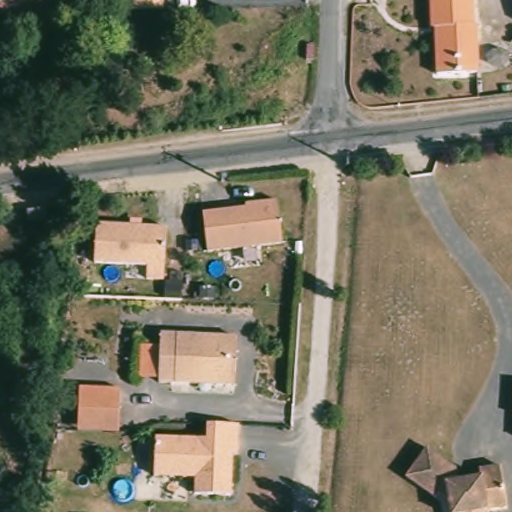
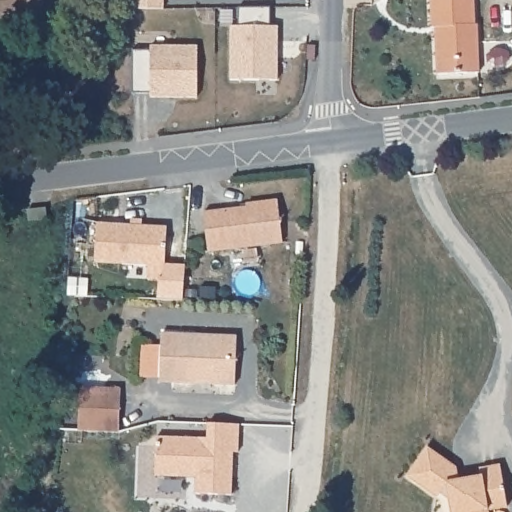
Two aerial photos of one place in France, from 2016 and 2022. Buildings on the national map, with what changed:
unchanged [(11,14),(0,15),(0,0),(40,0),(41,6),(42,13),(11,17),(11,14)]
new [(163,0),(163,9),(132,9),(132,0),(163,0)]
unchanged [(475,27),(476,74),(436,75),(435,36),(438,36),(438,31),(431,31),(431,0),(471,0),(471,27),(475,27)]
new [(231,26),(239,27),(239,7),(270,7),(270,26),(278,27),(278,81),(230,80),(231,26)]
new [(150,97),(151,92),(134,92),(135,52),(151,52),(151,46),(197,47),(197,99),(150,97)]
unchanged [(244,209),(244,205),(276,202),(282,246),(206,255),(202,214),(244,209)]
unchanged [(165,227),(164,267),(163,282),(145,282),(146,267),(94,265),(95,225),(165,227)]
unchanged [(170,382),(157,381),(157,373),(141,372),(144,342),(160,343),(160,335),(236,339),(233,386),(214,385),(192,383),(170,382)]
unchanged [(118,407),(117,430),(76,427),(78,405),(118,407)]
unchanged [(205,422),(239,423),(238,452),(232,452),(230,494),(194,493),(194,476),(154,475),(155,435),(205,437),(205,422)]
unchanged [(455,469),(456,480),(467,477),(481,475),(480,467),(500,464),(507,506),(488,509),(489,512),(451,512),(447,492),(440,493),(438,493),(435,498),(405,478),(426,449),(442,461),(455,469)]

